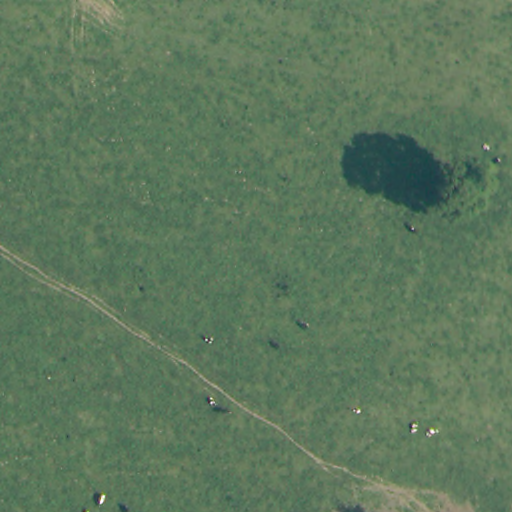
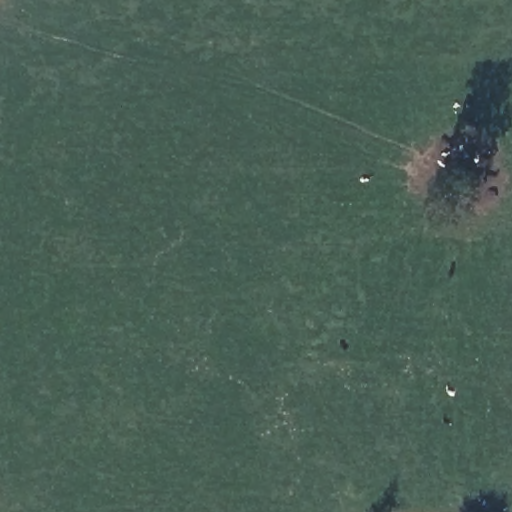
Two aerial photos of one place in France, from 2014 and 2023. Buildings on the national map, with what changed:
[]

